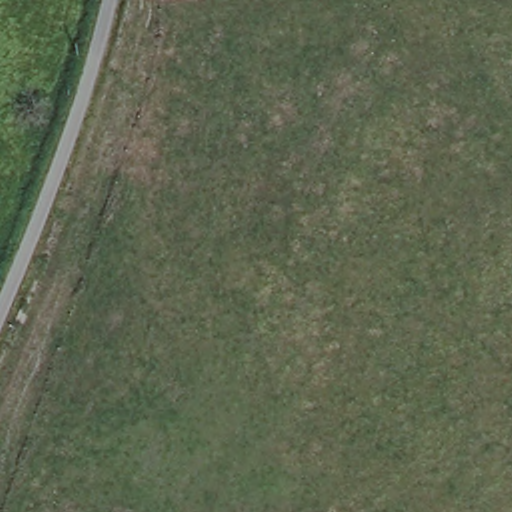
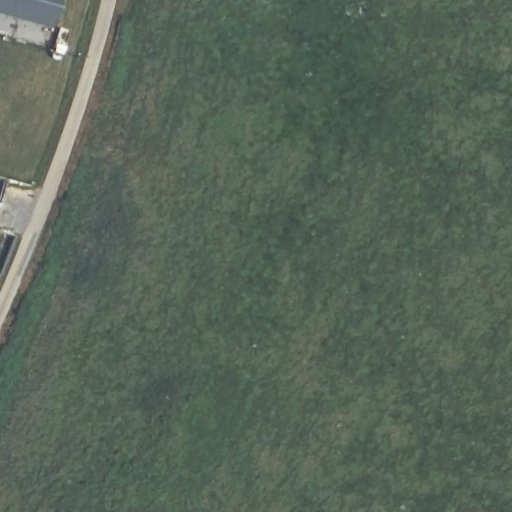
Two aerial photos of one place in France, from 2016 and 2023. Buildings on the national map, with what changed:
new [(0,11),(0,0),(57,0),(50,26),(0,11)]

